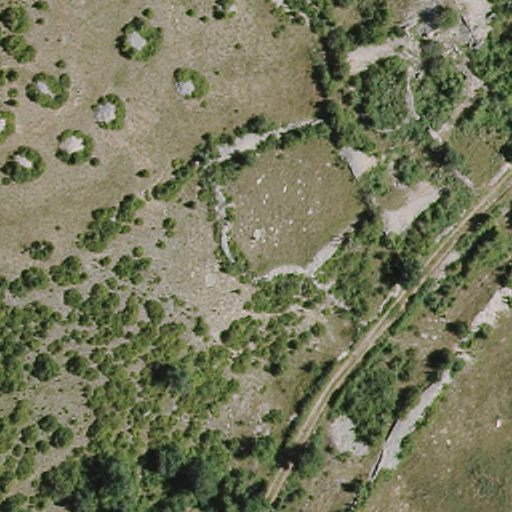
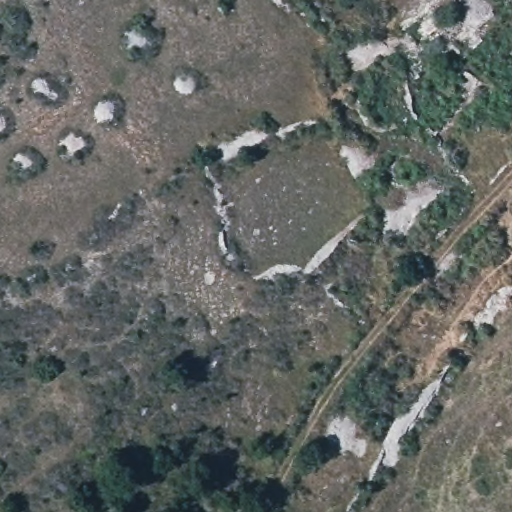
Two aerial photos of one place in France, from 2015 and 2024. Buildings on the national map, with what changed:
[]

